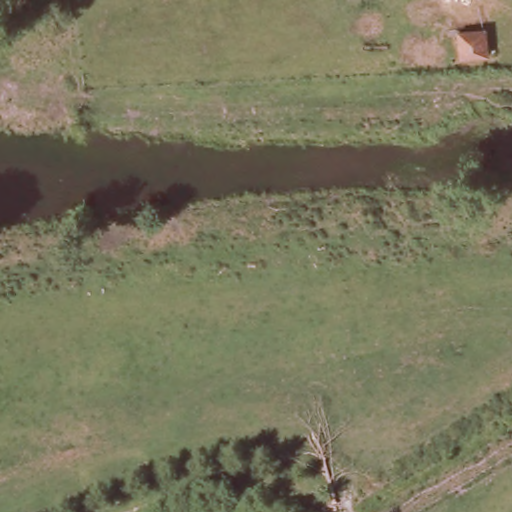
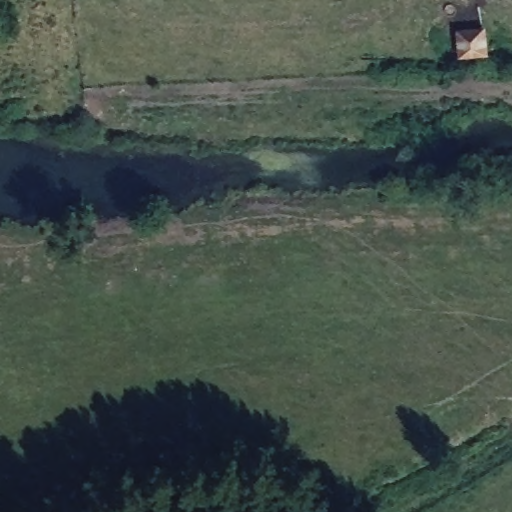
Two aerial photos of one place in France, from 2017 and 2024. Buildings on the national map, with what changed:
unchanged [(486,52),(461,54),(460,27),(485,26),(486,52)]

